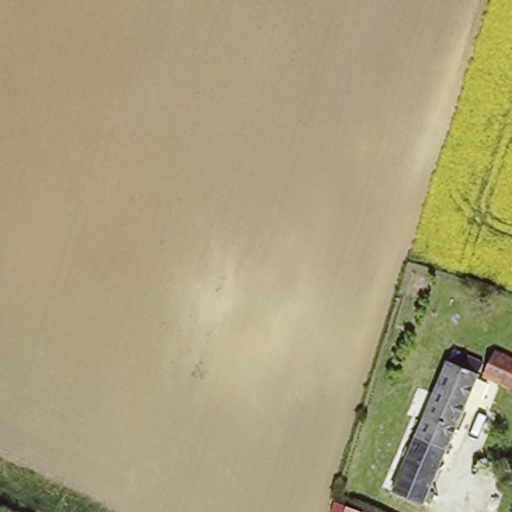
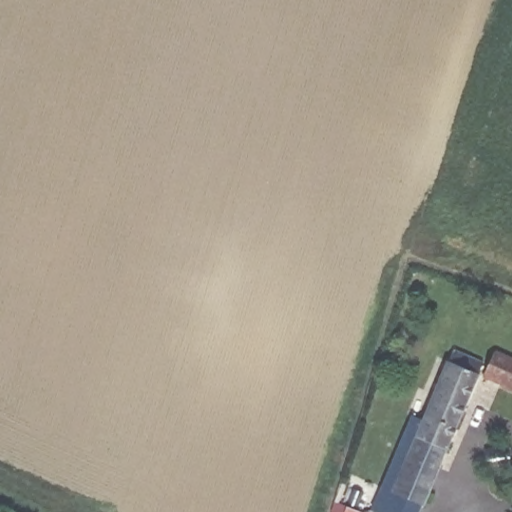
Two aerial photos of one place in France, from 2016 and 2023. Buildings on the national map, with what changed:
unchanged [(512,364),(512,391),(477,377),(487,354),(512,364)]
unchanged [(447,356),(474,367),(471,375),(474,376),(419,508),(388,496),(447,356)]
unchanged [(360,512),(344,512),(347,502),(361,509),(360,512)]

